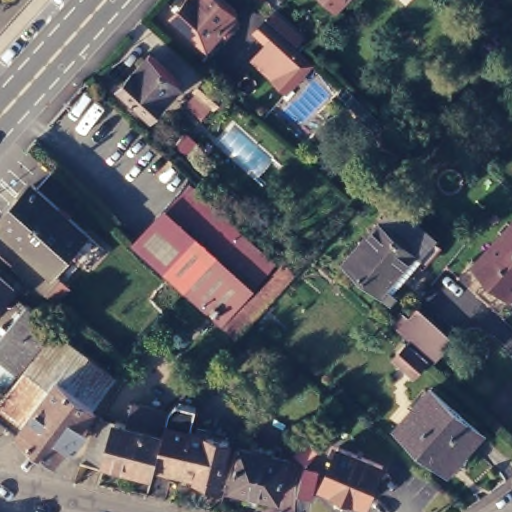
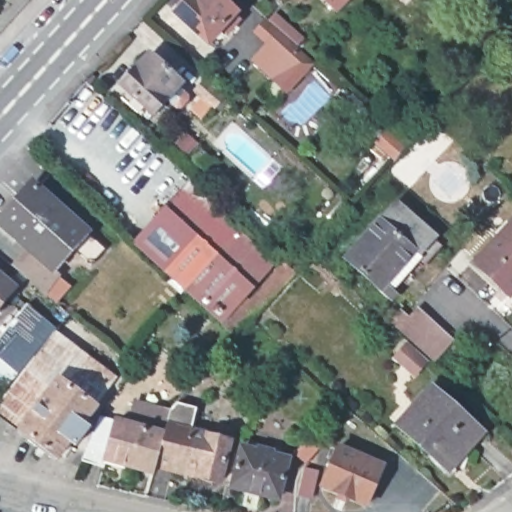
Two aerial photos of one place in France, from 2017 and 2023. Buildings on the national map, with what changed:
unchanged [(208,43),(175,13),(186,0),(224,0),(236,11),(208,43)]
unchanged [(324,0),(346,0),(335,11),(324,0)]
unchanged [(254,30),(259,25),(292,54),(287,60),(254,30)]
unchanged [(252,31),(282,58),(271,70),(241,43),(252,31)]
unchanged [(129,95),(135,89),(120,76),(150,45),(181,74),(152,105),(143,97),(137,103),(129,95)]
unchanged [(220,111),(215,106),(214,108),(195,91),(205,80),(223,97),(223,98),(228,103),(220,111)]
unchanged [(37,179),(91,228),(108,244),(93,260),(76,244),(58,265),(63,270),(48,287),(17,261),(32,242),(4,217),(37,179)]
unchanged [(236,340),(130,243),(187,180),(295,272),(236,340)]
unchanged [(445,238),(426,259),(416,250),(392,278),(400,286),(400,288),(400,290),(400,292),(398,293),(395,293),(393,293),(385,285),(350,254),(400,198),(445,238)]
unchanged [(510,289),(477,258),(512,219),(512,286),(510,289)]
unchanged [(0,307),(0,266),(20,284),(0,307)]
unchanged [(90,353),(87,357),(117,379),(83,424),(89,428),(75,446),(70,442),(57,459),(0,417),(0,403),(21,376),(18,374),(0,359),(0,336),(27,304),(57,330),(54,333),(56,335),(59,330),(90,353)]
unchanged [(399,329),(392,322),(400,312),(408,319),(417,310),(451,341),(433,361),(399,329)]
unchanged [(449,465),(398,420),(430,383),(482,428),(449,465)]
unchanged [(128,425),(133,403),(169,412),(157,462),(153,474),(107,461),(105,468),(82,462),(100,418),(128,425)]
unchanged [(197,409),(191,431),(197,433),(198,427),(212,430),(210,436),(230,441),(219,483),(192,477),(193,470),(157,462),(169,412),(177,403),(197,409)]
unchanged [(307,464),(296,455),(313,436),(323,445),(307,464)]
unchanged [(337,499),(339,494),(322,486),(338,446),(355,453),(358,445),(366,448),(362,457),(383,465),(366,505),(348,498),(347,502),(337,499)]
unchanged [(248,501),(250,492),(232,487),(242,448),(259,452),(260,449),(272,452),(271,455),(288,459),(278,499),(260,494),(257,503),(248,501)]
unchanged [(303,469),(317,472),(310,498),(297,496),(303,469)]

